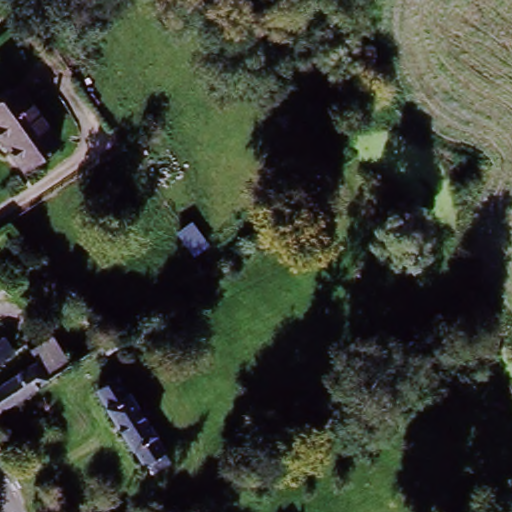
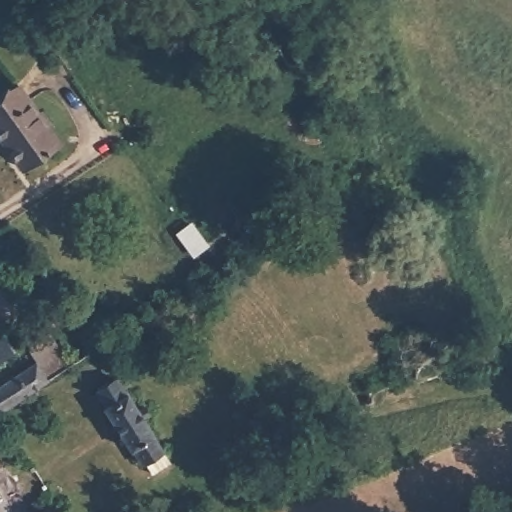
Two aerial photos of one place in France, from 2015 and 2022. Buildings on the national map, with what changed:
unchanged [(0,123),(0,95),(16,84),(60,140),(29,162),(0,123)]
unchanged [(120,342),(105,354),(96,343),(112,332),(115,335),(120,342)]
unchanged [(0,386),(33,363),(27,352),(51,336),(69,360),(43,378),(45,380),(0,410),(0,386)]
unchanged [(10,352),(0,359),(0,339),(0,338),(10,352)]
unchanged [(128,440),(125,441),(98,402),(100,400),(90,386),(110,373),(120,387),(123,386),(133,400),(138,396),(143,402),(138,406),(151,426),(148,428),(157,441),(138,455),(128,440)]

